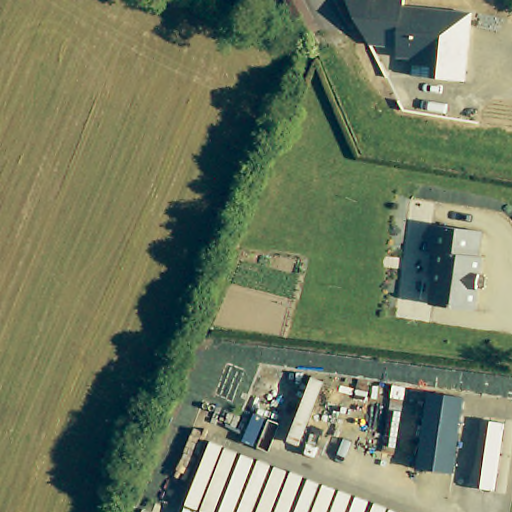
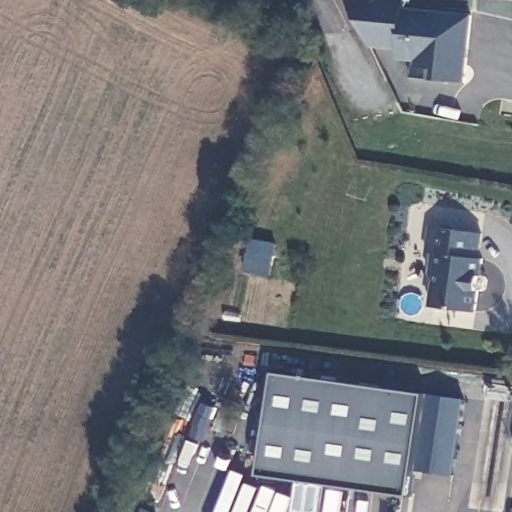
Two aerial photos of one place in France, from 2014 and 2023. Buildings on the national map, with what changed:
unchanged [(413,76),(415,60),(396,58),(395,48),(370,45),(349,0),(402,0),(401,6),(473,14),(468,83),(413,76)]
unchanged [(490,282),(489,290),(486,293),(481,292),(478,314),(433,307),(437,283),(432,276),(435,255),(430,254),(433,228),(485,235),(481,260),(485,261),(483,278),(488,279),(490,282)]
new [(252,241),(276,245),(270,276),(245,271),(252,241)]
new [(420,470),(415,468),(412,497),(261,476),(275,373),(429,394),(420,470)]
unchanged [(420,470),(429,394),(462,398),(455,473),(420,470)]

